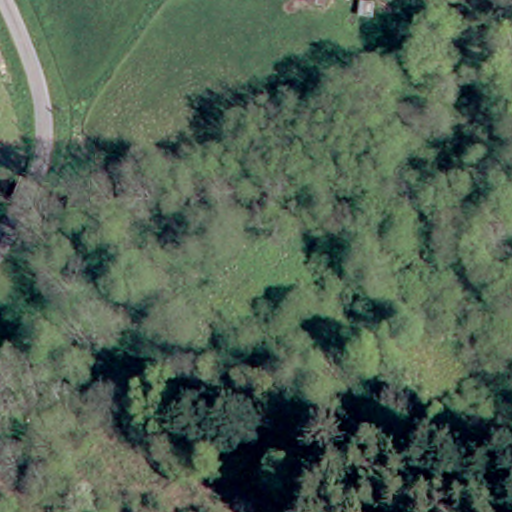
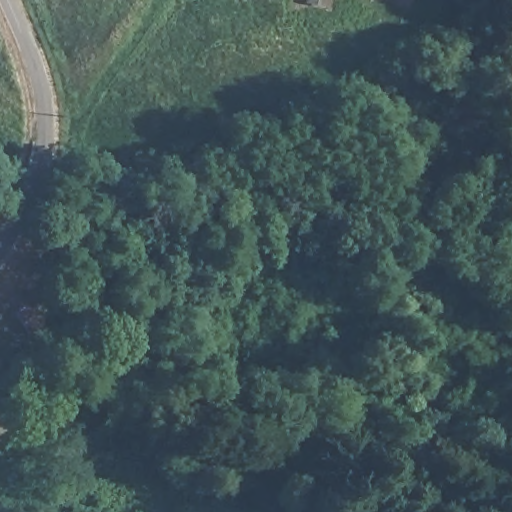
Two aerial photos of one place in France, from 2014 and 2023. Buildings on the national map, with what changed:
unchanged [(7,388),(3,421),(0,421),(0,387),(7,388)]

